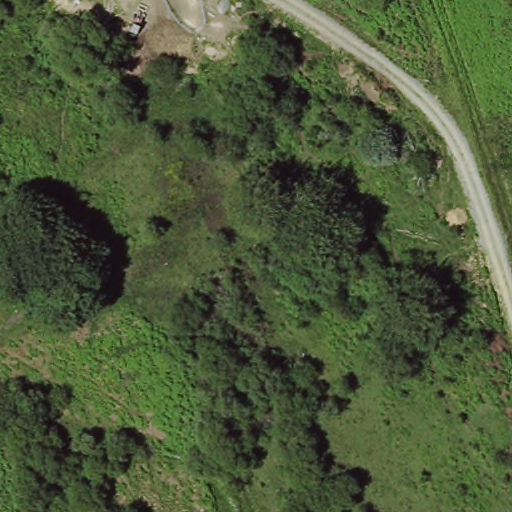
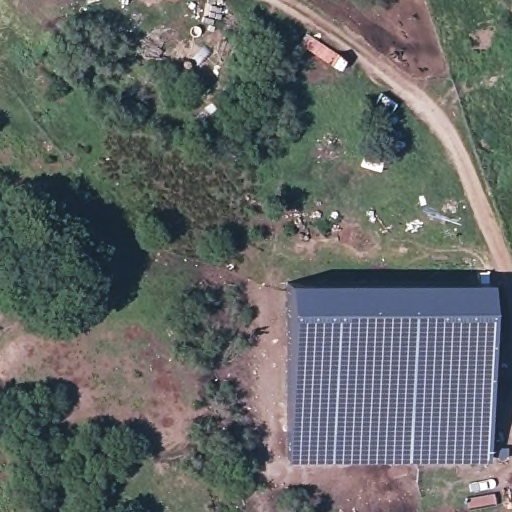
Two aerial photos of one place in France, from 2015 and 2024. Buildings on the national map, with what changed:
new [(488,280),(490,462),(287,461),(287,282),(488,280)]

